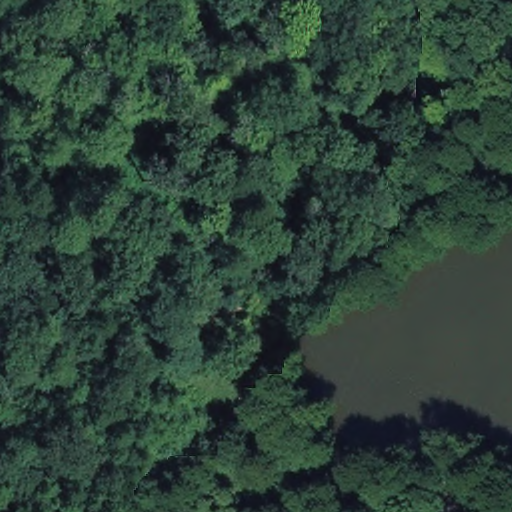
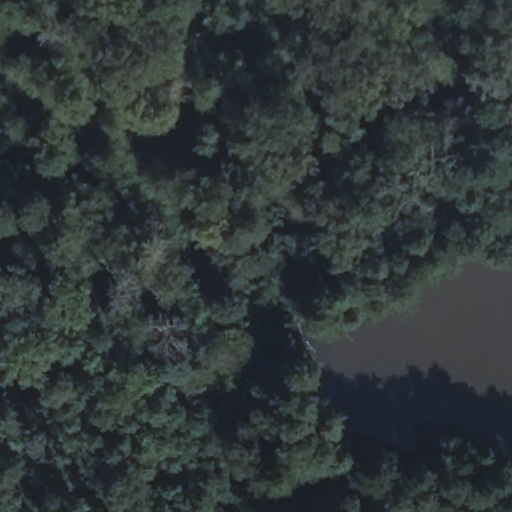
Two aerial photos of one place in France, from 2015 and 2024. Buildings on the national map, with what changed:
unchanged [(200,325),(218,322),(223,345),(205,348),(200,325)]

